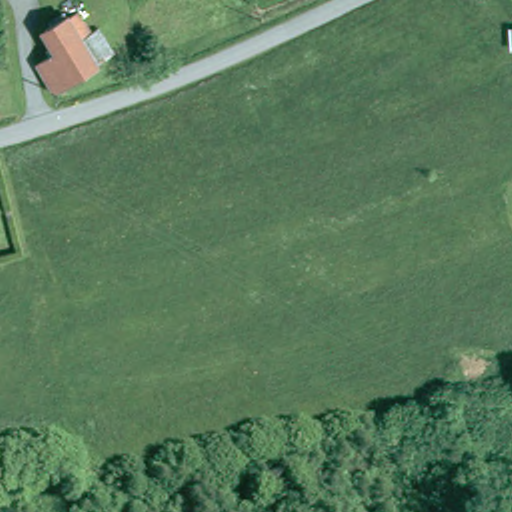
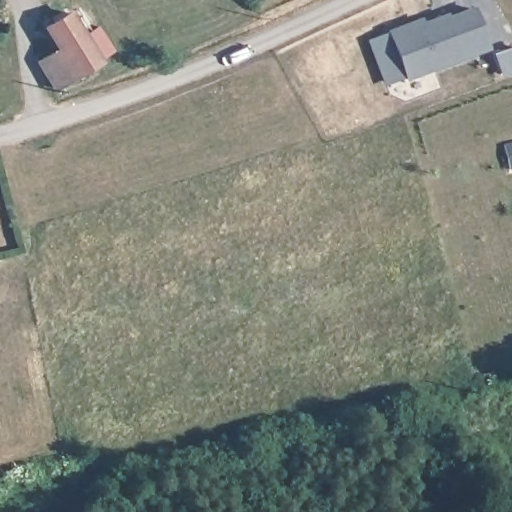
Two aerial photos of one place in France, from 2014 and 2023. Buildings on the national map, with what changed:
unchanged [(42,63),(60,50),(45,31),(76,6),(90,25),(81,32),(100,62),(58,89),(42,63)]
new [(418,18),(420,23),(443,14),(445,17),(471,6),(486,46),(405,79),(386,31),(406,23),(418,18)]
new [(386,31),(405,79),(386,86),(367,39),(386,31)]

